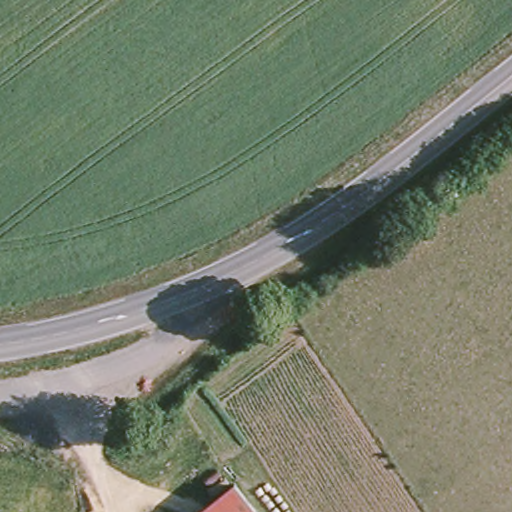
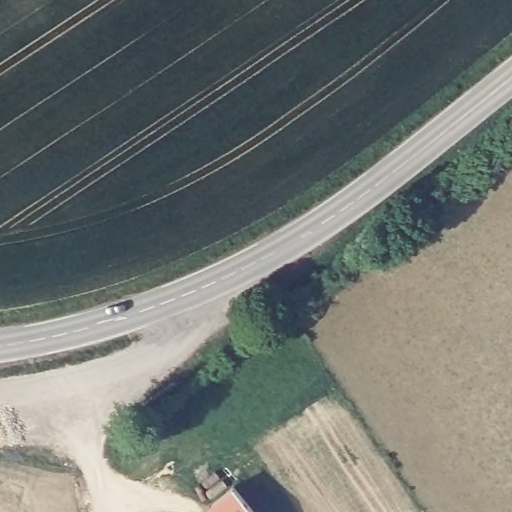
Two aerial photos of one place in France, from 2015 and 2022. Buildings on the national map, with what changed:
unchanged [(254,512),(204,512),(235,488),(254,512)]

